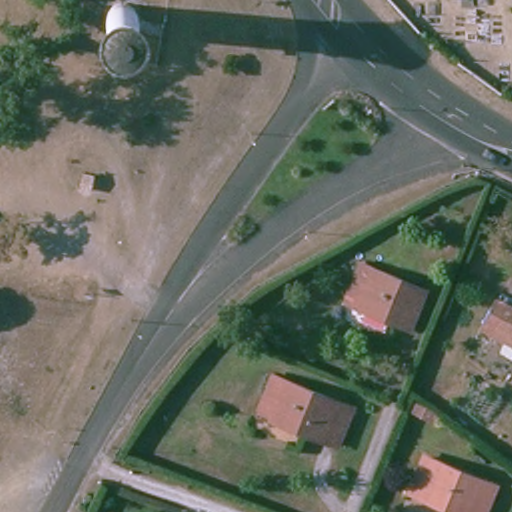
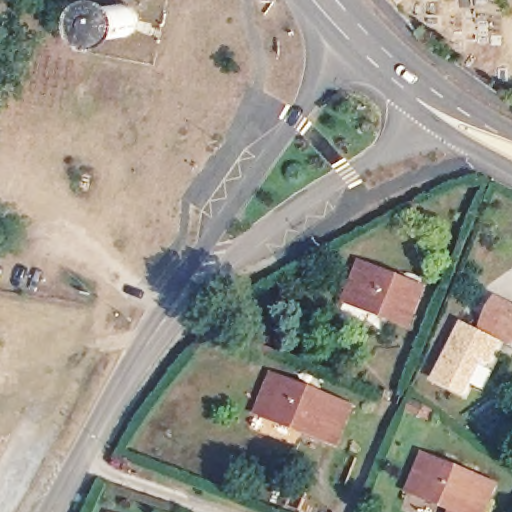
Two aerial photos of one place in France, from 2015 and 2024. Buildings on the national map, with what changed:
unchanged [(348,284),(356,263),(424,290),(411,327),(355,307),(341,302),(348,284)]
unchanged [(476,342),(479,333),(493,300),(512,309),(512,348),(507,358),(476,342)]
new [(435,380),(462,321),(481,330),(479,333),(476,342),(498,353),(494,364),(483,360),(467,397),(435,380)]
unchanged [(271,399),(279,379),(346,405),(331,444),(282,426),(263,419),(271,399)]
unchanged [(402,419),(406,408),(426,416),(422,427),(402,419)]
unchanged [(425,502),(414,497),(420,482),(431,459),(496,490),(487,512),(448,512),(425,502)]

